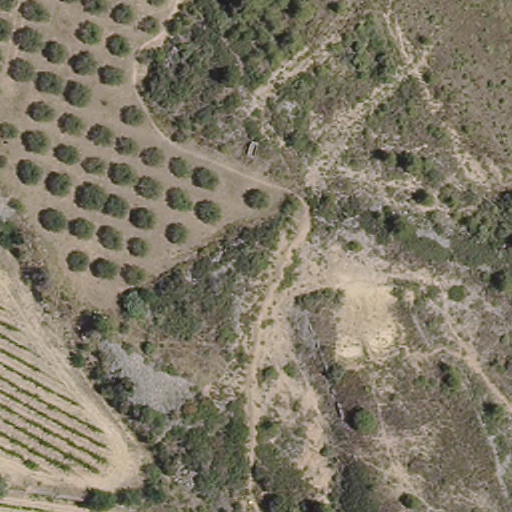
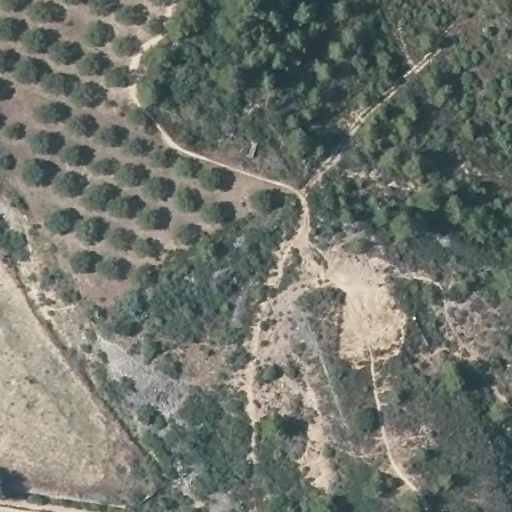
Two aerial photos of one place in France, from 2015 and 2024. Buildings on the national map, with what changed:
[]

